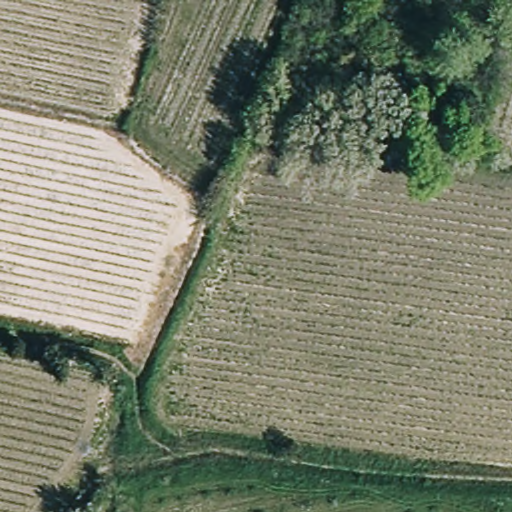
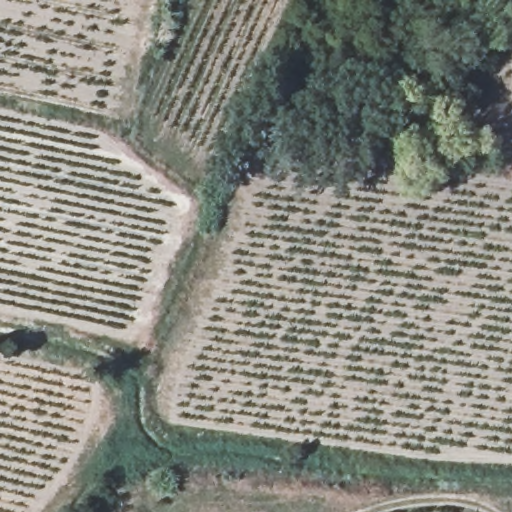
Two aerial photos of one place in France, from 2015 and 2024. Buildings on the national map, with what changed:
[]

